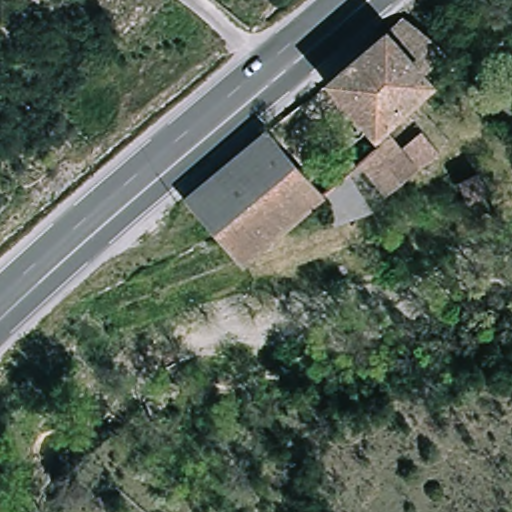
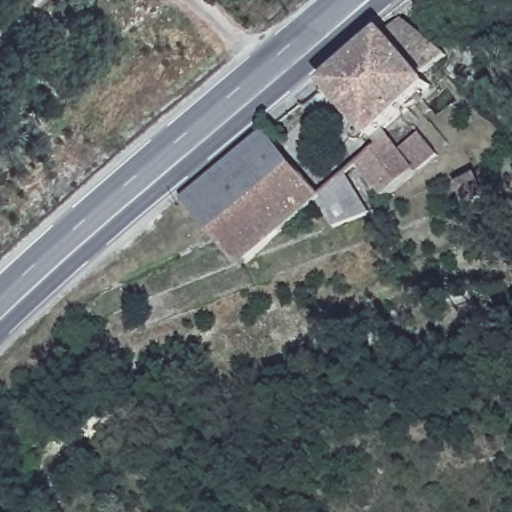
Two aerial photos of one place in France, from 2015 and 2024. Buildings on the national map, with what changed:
unchanged [(371,139),(321,87),(407,14),(453,69),(442,80),(371,139)]
unchanged [(193,203),(274,136),(320,188),(348,172),(379,213),(341,230),(321,209),(247,263),(193,203)]
unchanged [(367,161),(393,141),(404,154),(431,141),(452,168),(394,197),(367,161)]
unchanged [(494,195),(469,208),(460,189),(483,177),(494,195)]

